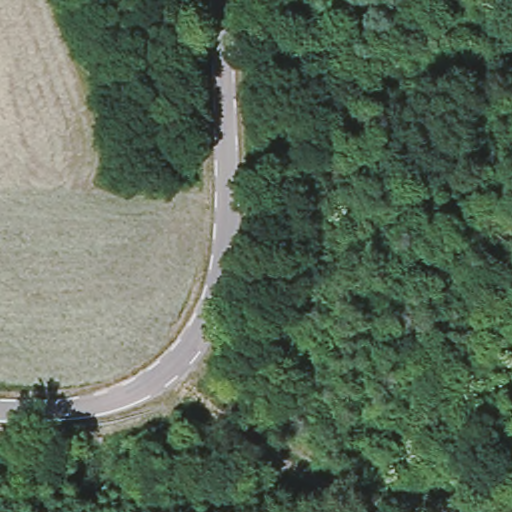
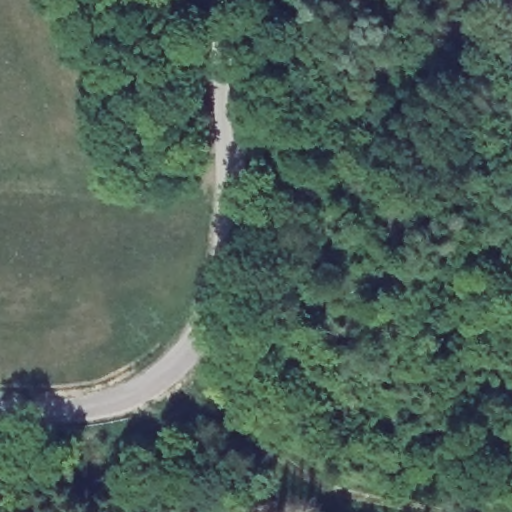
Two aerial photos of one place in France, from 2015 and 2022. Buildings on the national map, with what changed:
[]

